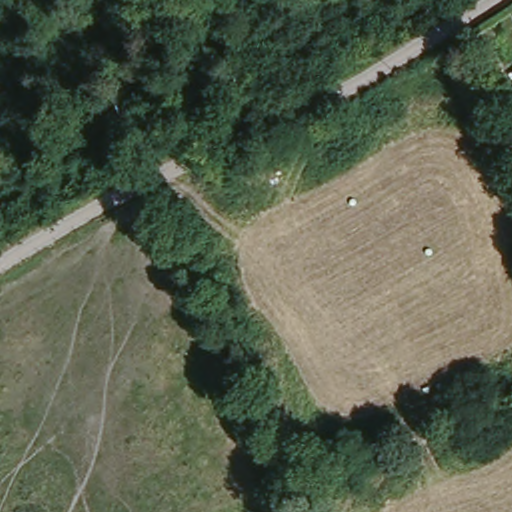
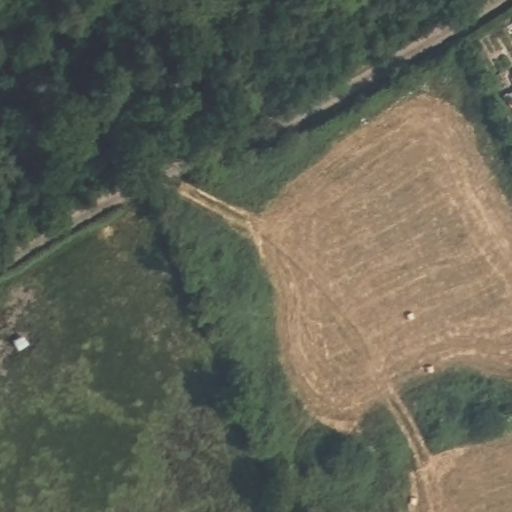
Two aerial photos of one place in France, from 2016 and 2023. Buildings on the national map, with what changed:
unchanged [(512,103),(512,124),(504,106),(512,103)]

